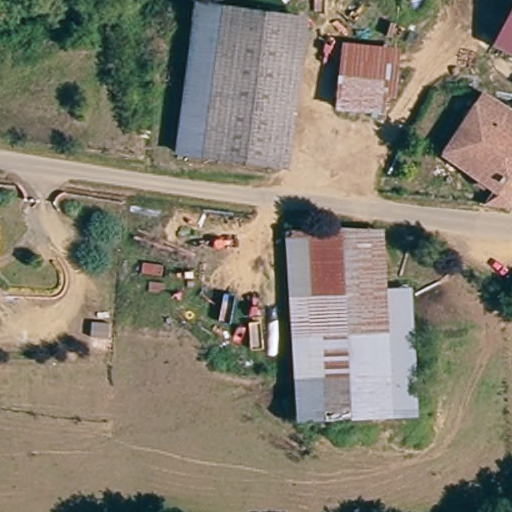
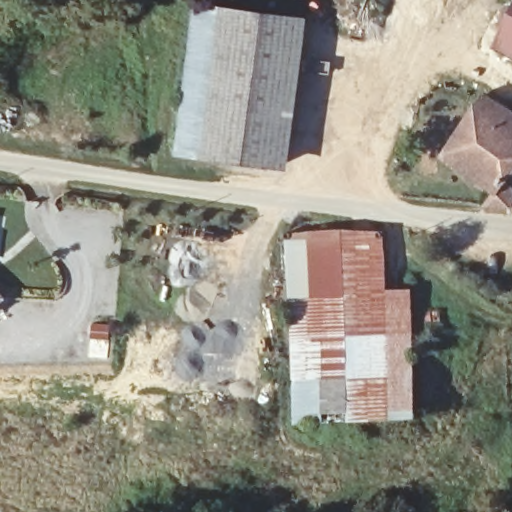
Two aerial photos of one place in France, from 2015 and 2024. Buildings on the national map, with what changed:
unchanged [(284,163),(186,150),(204,9),(303,20),(284,163)]
demolished [(397,100),(390,99),(386,116),(335,112),(338,87),(316,85),(322,41),(403,47),(397,100)]
unchanged [(512,42),(512,55),(505,51),(512,42)]
unchanged [(512,192),(480,189),(492,166),(451,141),(483,87),(512,104),(512,192)]
unchanged [(382,290),(415,289),(419,412),(300,422),(288,238),(380,232),(382,290)]
unchanged [(1,299),(0,300),(0,297),(1,299)]

